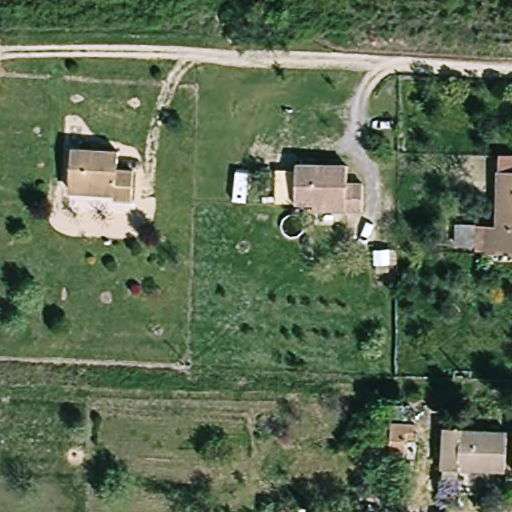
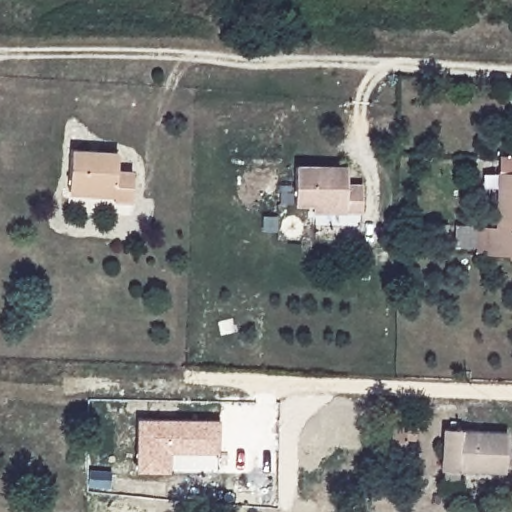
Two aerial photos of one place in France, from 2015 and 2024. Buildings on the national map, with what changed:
unchanged [(134,198),(117,196),(116,204),(71,202),(73,145),(119,147),(118,166),(135,167),(134,198)]
unchanged [(499,153),(512,153),(512,253),(455,253),(455,222),(496,225),(499,153)]
unchanged [(363,182),(363,213),(346,213),(345,205),(298,204),(299,164),(347,167),(348,181),(363,182)]
new [(221,420),(219,454),(171,454),(171,472),(136,471),(137,419),(221,420)]
unchanged [(388,453),(392,419),(404,419),(415,420),(414,435),(404,435),(403,453),(388,453)]
unchanged [(503,437),(500,476),(440,470),(443,430),(503,437)]

